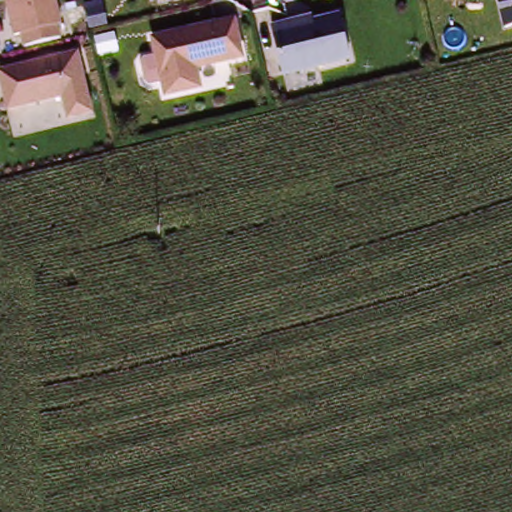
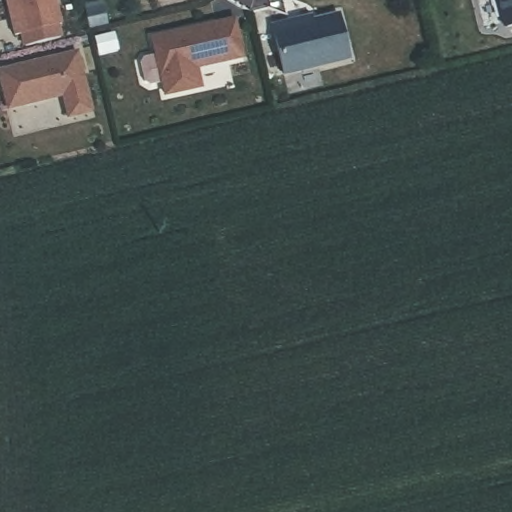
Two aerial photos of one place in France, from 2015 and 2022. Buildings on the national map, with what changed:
unchanged [(17,35),(14,20),(9,0),(58,0),(64,24),(17,35)]
unchanged [(512,0),(512,27),(506,29),(499,0),(512,0)]
unchanged [(103,1),(108,18),(93,21),(89,4),(103,1)]
unchanged [(352,63),(287,79),(275,32),(290,29),(315,23),(316,26),(342,20),(352,63)]
unchanged [(237,21),(245,59),(198,69),(202,88),(167,95),(155,38),(237,21)]
unchanged [(112,29),(116,46),(102,49),(97,32),(112,29)]
unchanged [(80,57),(95,116),(70,123),(65,101),(10,114),(1,76),(80,57)]

